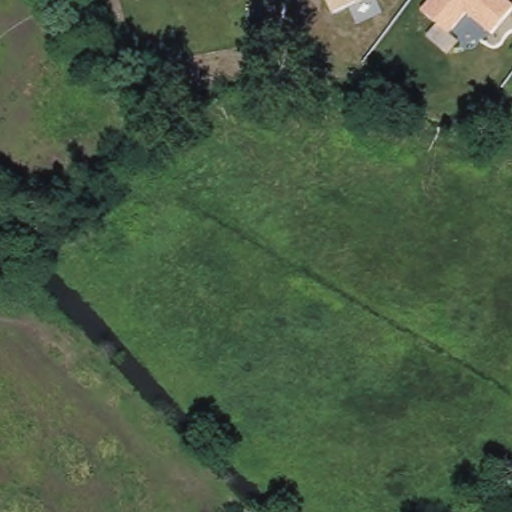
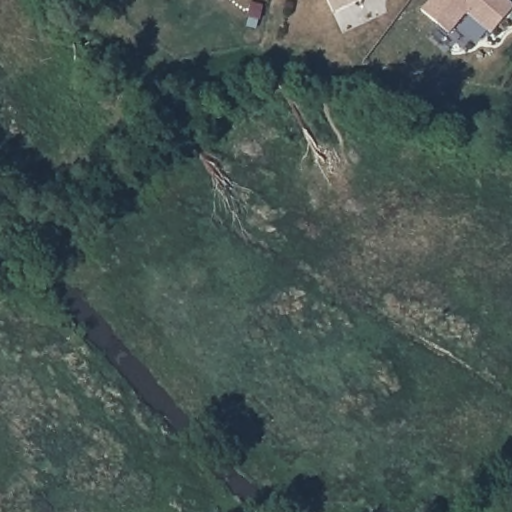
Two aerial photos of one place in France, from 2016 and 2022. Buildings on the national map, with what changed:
unchanged [(325,0),(365,0),(333,15),(325,0)]
unchanged [(512,9),(490,36),(463,15),(448,35),(419,12),(429,0),(506,0),(512,5),(512,9)]
unchanged [(121,14),(128,28),(115,34),(108,20),(121,14)]

